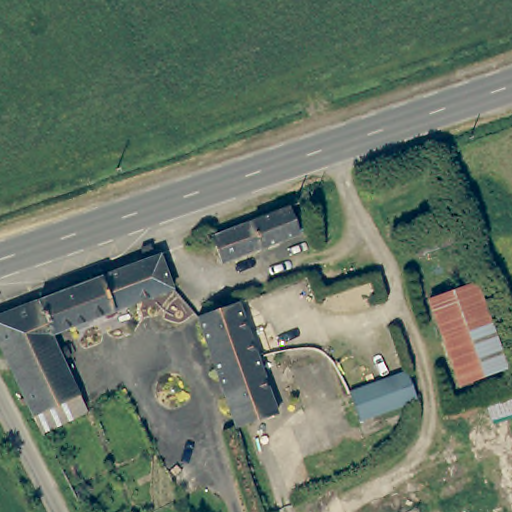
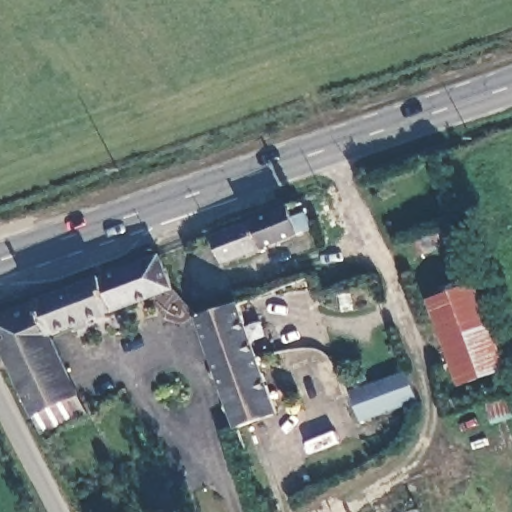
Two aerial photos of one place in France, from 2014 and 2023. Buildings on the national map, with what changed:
unchanged [(288,208),(298,233),(222,263),(212,237),(288,208)]
unchanged [(42,433),(32,416),(0,345),(0,315),(160,255),(172,288),(50,335),(86,413),(42,433)]
unchanged [(428,300),(476,283),(506,368),(459,385),(428,300)]
unchanged [(237,302),(252,341),(267,381),(277,413),(236,427),(197,318),(237,302)]
unchanged [(350,392),(407,372),(417,400),(360,421),(350,392)]

